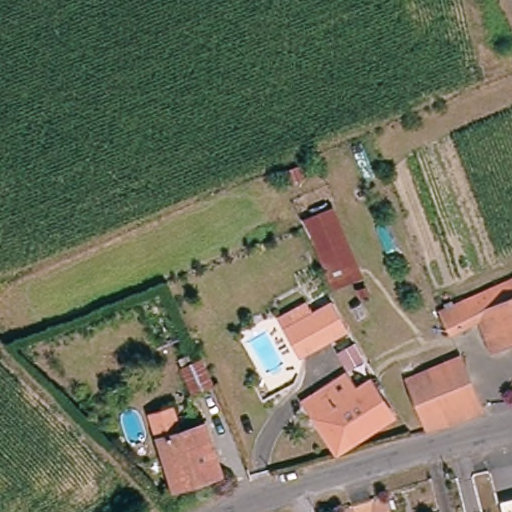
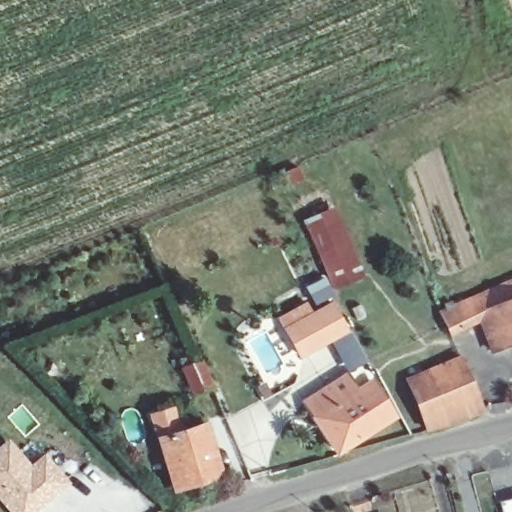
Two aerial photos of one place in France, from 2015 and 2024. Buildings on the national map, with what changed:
unchanged [(334,207),(365,276),(337,288),(307,220),(334,207)]
unchanged [(512,281),(512,299),(475,314),(467,300),(512,281)]
unchanged [(488,351),(475,323),(448,335),(438,310),(467,300),(475,314),(512,299),(512,342),(488,351)]
unchanged [(298,358),(286,337),(278,321),(304,307),(309,316),(332,303),(335,311),(339,325),(344,333),(326,342),(298,358)]
unchanged [(194,392),(182,366),(201,359),(212,385),(194,392)]
unchanged [(410,380),(463,361),(484,416),(430,432),(410,380)]
unchanged [(339,450),(308,400),(328,385),(340,400),(367,382),(371,380),(393,415),(392,416),(339,450)]
unchanged [(158,447),(151,425),(172,418),(179,440),(204,432),(220,481),(173,495),(158,447)]
new [(29,462),(44,451),(70,481),(33,512),(7,512),(0,503),(0,442),(6,436),(29,462)]
unchanged [(512,494),(512,512),(506,512),(503,497),(512,494)]

